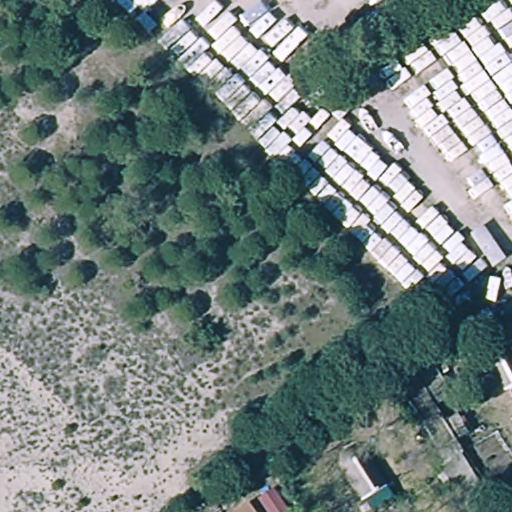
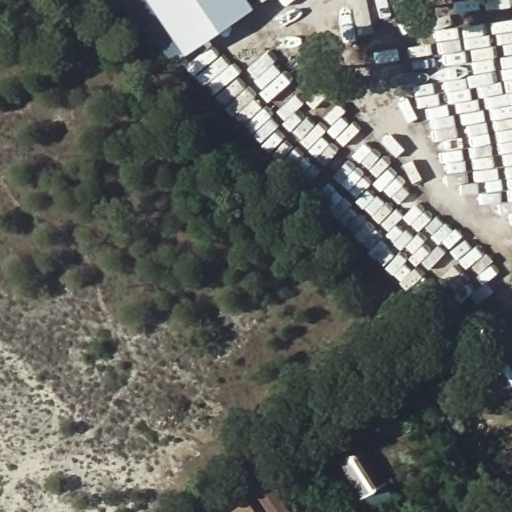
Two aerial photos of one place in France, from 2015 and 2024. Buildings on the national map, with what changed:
new [(180,49),(160,61),(112,0),(146,0),(180,49)]
new [(253,8),(185,56),(146,0),(247,0),(253,8)]
new [(258,4),(255,0),(264,0),(258,4)]
unchanged [(503,347),(512,361),(512,392),(506,387),(500,380),(487,358),(503,347)]
unchanged [(368,449),(395,494),(368,509),(341,466),(368,449)]
unchanged [(258,512),(239,512),(252,503),(258,512)]

